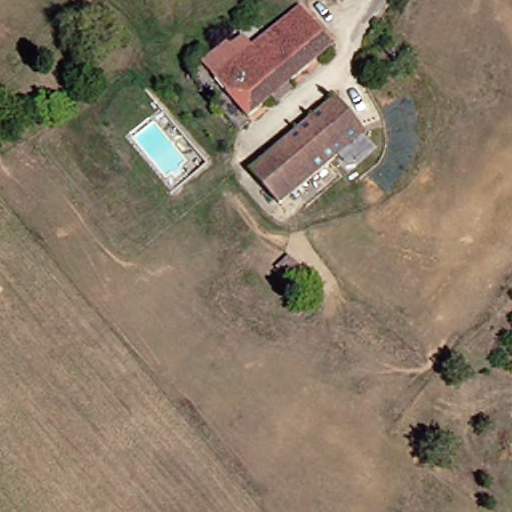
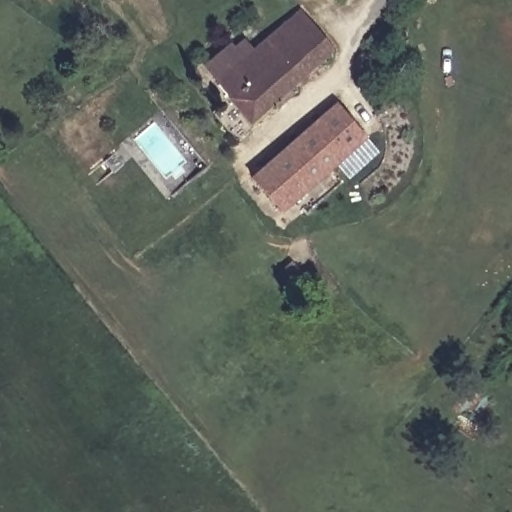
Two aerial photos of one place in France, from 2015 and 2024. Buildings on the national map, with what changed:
unchanged [(346,5),(342,0),(351,0),(346,5)]
unchanged [(224,110),(236,101),(221,84),(304,12),(338,50),(254,121),(243,130),(224,110)]
unchanged [(290,210),(264,179),(344,107),(371,137),(296,205),(290,210)]

